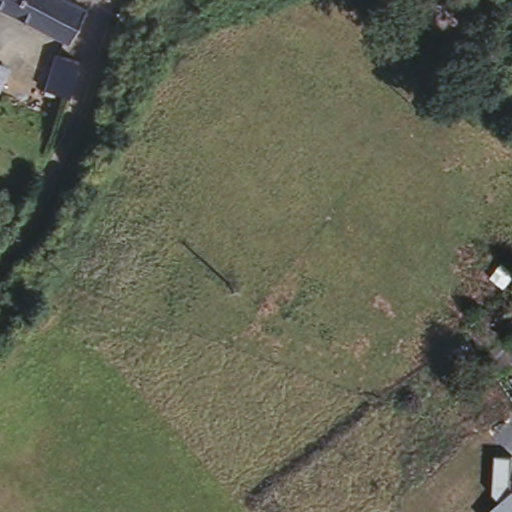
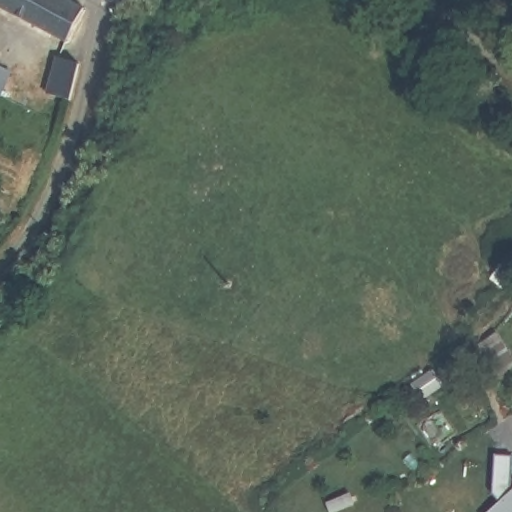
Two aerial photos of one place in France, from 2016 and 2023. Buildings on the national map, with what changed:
unchanged [(0,3),(0,0),(80,0),(96,7),(77,40),(0,3)]
unchanged [(57,52),(80,57),(72,99),(47,95),(57,52)]
unchanged [(512,463),(512,487),(512,512),(492,512),(499,504),(493,498),(496,462),(512,463)]

